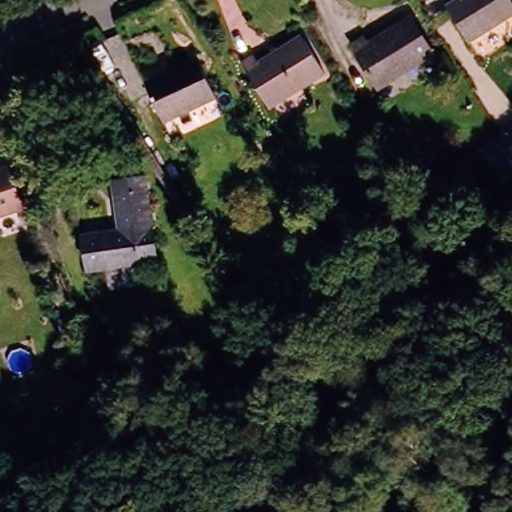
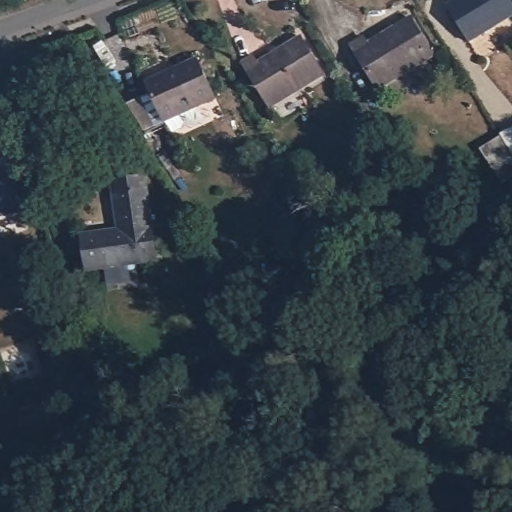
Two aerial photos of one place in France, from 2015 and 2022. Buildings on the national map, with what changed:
unchanged [(512,5),(512,10),(467,42),(442,5),(450,0),(509,0),(512,5)]
unchanged [(430,56),(373,88),(347,43),(360,36),(364,43),(408,18),(430,56)]
unchanged [(241,61),(254,53),(257,60),(301,34),(322,71),(266,105),(241,61)]
unchanged [(192,60),(213,97),(162,127),(142,90),(192,60)]
unchanged [(512,128),(512,149),(502,134),(512,128)]
unchanged [(512,149),(512,178),(500,185),(478,149),(502,134),(512,149)]
unchanged [(24,214),(0,223),(0,173),(7,170),(24,214)]
unchanged [(81,269),(78,231),(116,227),(113,193),(112,176),(141,172),(142,190),(150,262),(81,269)]

